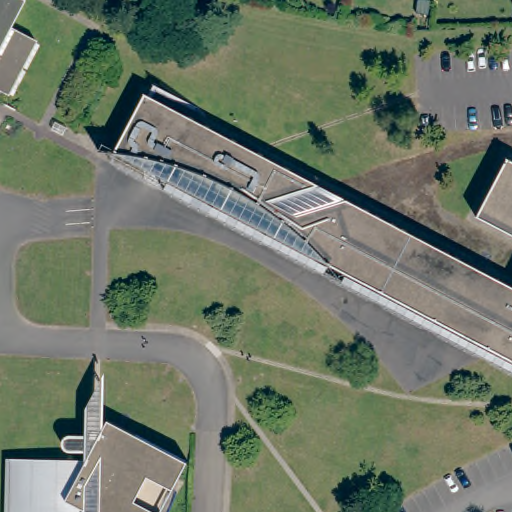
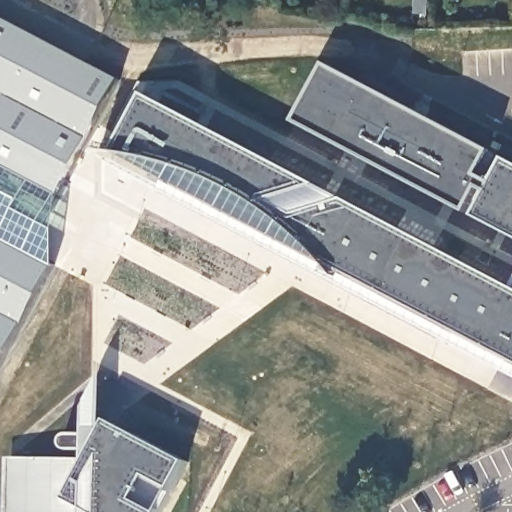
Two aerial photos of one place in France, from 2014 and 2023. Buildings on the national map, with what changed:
demolished [(17,0),(4,24),(31,37),(3,92),(0,91),(0,0),(17,0)]
new [(111,85),(48,195),(0,295),(0,26),(111,85)]
new [(299,122),(327,66),(503,160),(472,219),(299,122)]
unchanged [(142,97),(512,289),(512,365),(112,155),(142,97)]
unchanged [(503,160),(512,165),(512,241),(472,219),(503,160)]
unchanged [(7,465),(80,467),(80,457),(64,458),(60,456),(58,453),(57,449),(57,445),(58,442),(60,440),(81,440),(81,405),(86,405),(98,391),(97,433),(101,427),(180,466),(157,512),(5,512),(7,465)]

